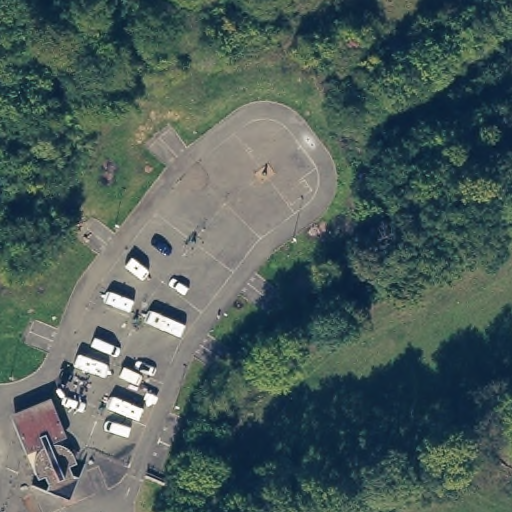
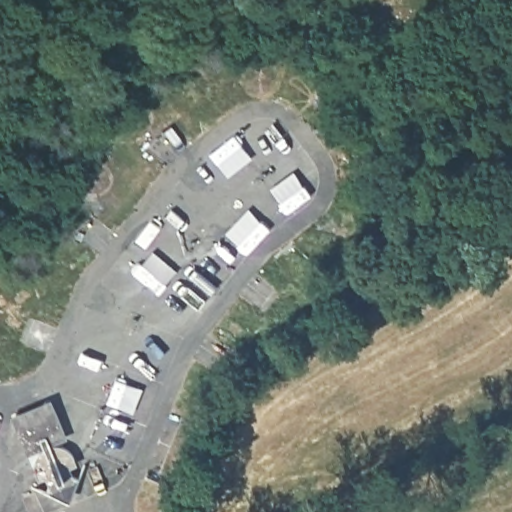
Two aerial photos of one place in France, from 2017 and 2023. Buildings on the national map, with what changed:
unchanged [(48,443),(37,450),(25,452),(12,416),(48,398),(67,439),(55,443),(48,443)]
unchanged [(70,499),(35,485),(33,458),(37,450),(48,443),(55,443),(61,443),(69,446),(80,462),(93,462),(70,499)]

